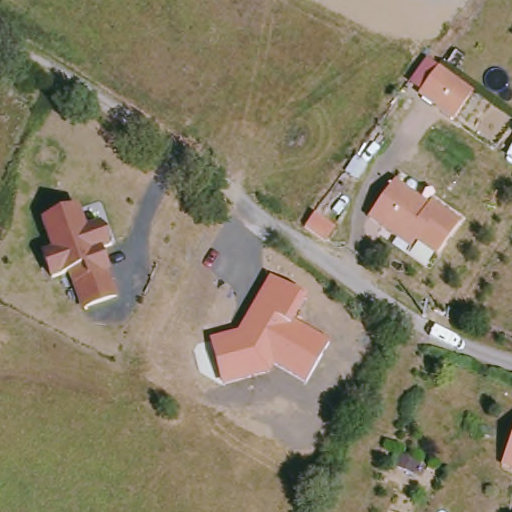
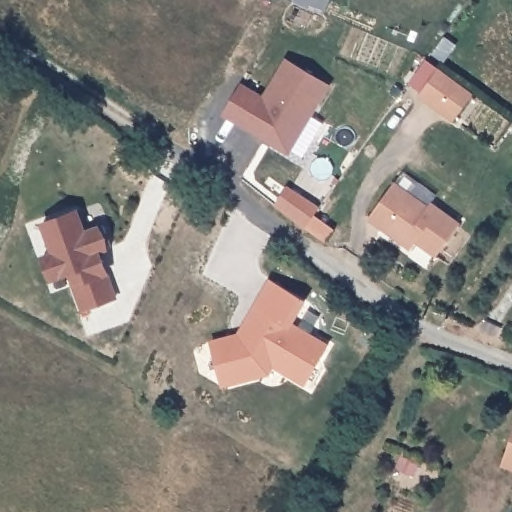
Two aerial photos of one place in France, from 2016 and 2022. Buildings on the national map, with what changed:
new [(242,81),(264,95),(286,56),(332,83),(290,152),(224,114),(242,81)]
unchanged [(472,94),(454,119),(419,94),(437,68),(472,94)]
unchanged [(396,239),(368,218),(395,182),(428,207),(431,203),(460,224),(437,256),(416,242),(410,249),(396,239)]
unchanged [(70,288),(66,275),(45,281),(38,257),(50,254),(40,221),(77,210),(84,234),(105,227),(112,250),(93,256),(96,265),(102,264),(105,278),(70,288)]
unchanged [(211,339),(235,332),(267,276),(300,295),(305,298),(295,318),(330,341),(304,385),(273,367),(270,373),(223,386),(211,339)]
unchanged [(113,305),(77,315),(70,288),(105,278),(113,305)]
unchanged [(512,436),(512,469),(502,465),(512,436)]

